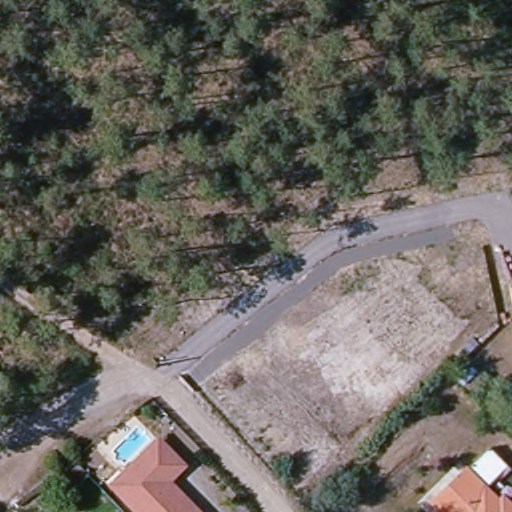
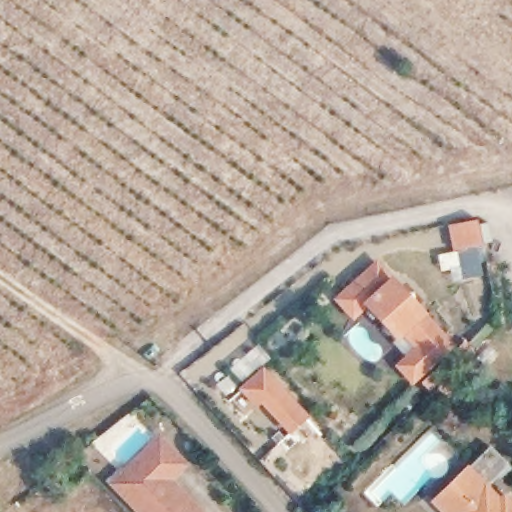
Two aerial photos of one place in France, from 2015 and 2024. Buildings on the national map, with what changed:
new [(477,222),(482,247),(452,253),(448,228),(477,222)]
new [(375,265),(450,349),(411,384),(397,369),(415,353),(400,337),(396,340),(365,306),(352,319),(336,301),(375,265)]
new [(261,371),(305,421),(290,434),(261,403),(255,408),(240,391),(261,371)]
unchanged [(169,444),(185,461),(169,476),(204,512),(146,512),(126,492),(115,481),(125,472),(160,436),(169,444)]
unchanged [(429,506),(466,472),(483,491),(496,504),(504,498),(512,507),(512,512),(435,512),(429,506)]

